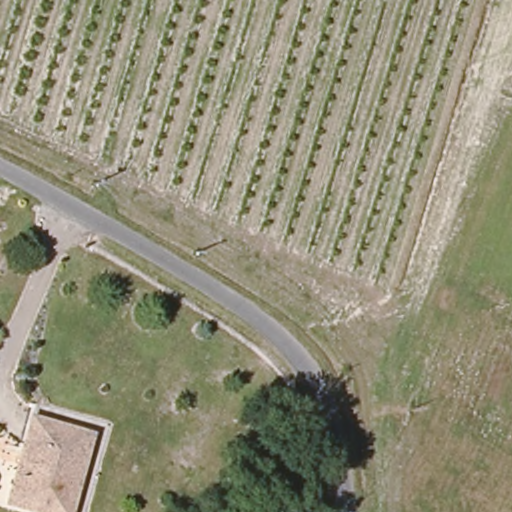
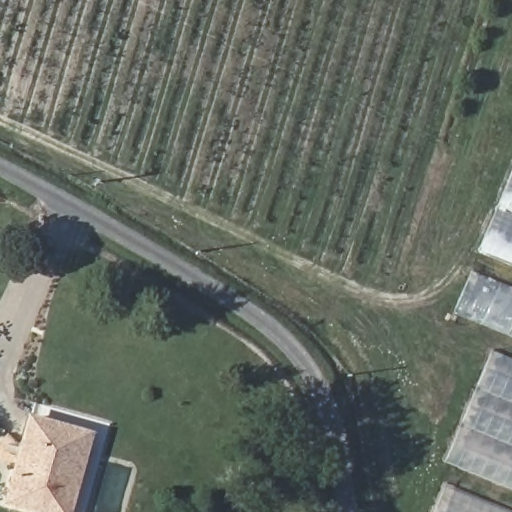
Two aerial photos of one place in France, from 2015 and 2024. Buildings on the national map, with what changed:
new [(512,166),(512,262),(477,248),(512,166)]
new [(512,288),(512,340),(451,315),(471,271),(512,288)]
new [(490,349),(512,357),(512,489),(442,461),(490,349)]
unchanged [(78,512),(10,512),(1,510),(25,410),(99,430),(78,512)]
new [(512,512),(431,512),(444,484),(512,511),(512,512)]

